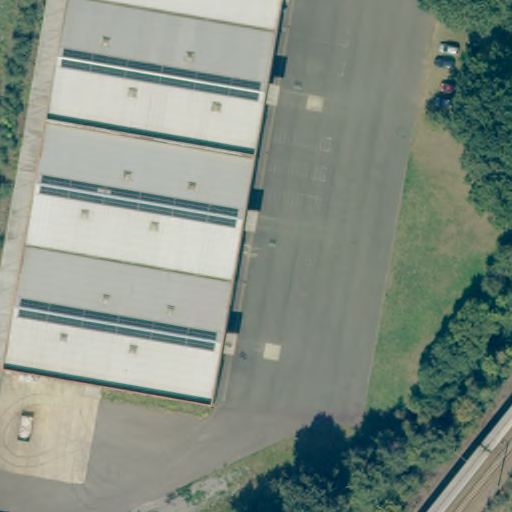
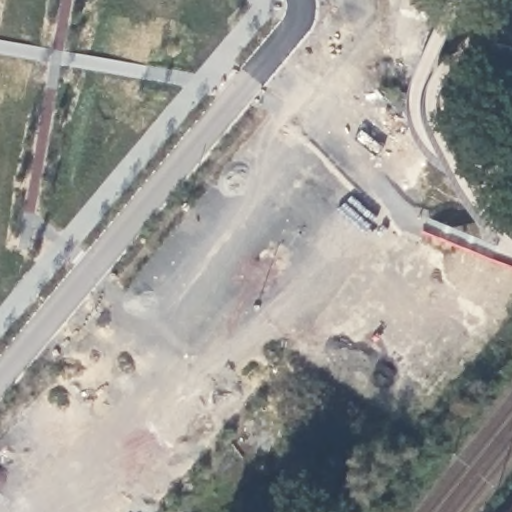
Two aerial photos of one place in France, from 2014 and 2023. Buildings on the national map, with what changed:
demolished [(10,366),(74,0),(287,0),(218,402),(10,366)]

